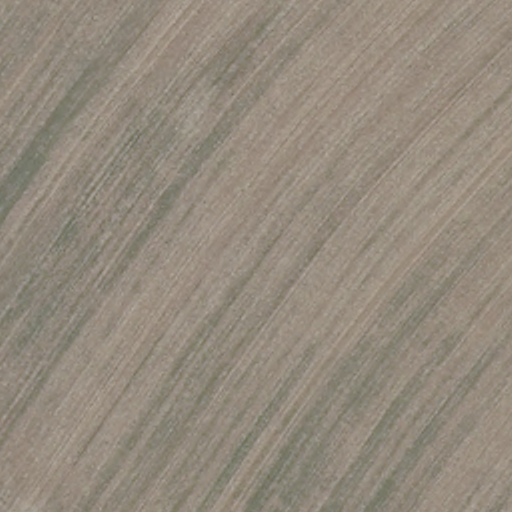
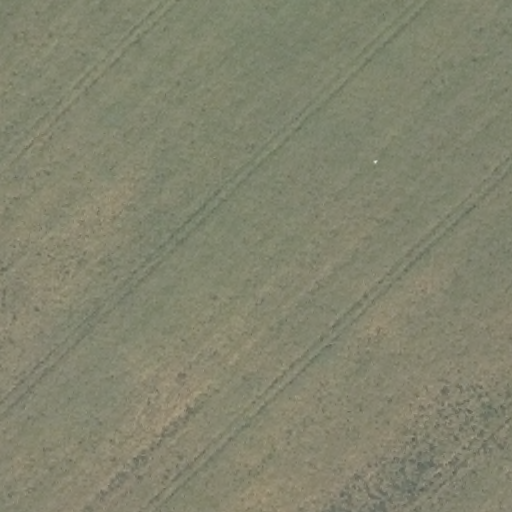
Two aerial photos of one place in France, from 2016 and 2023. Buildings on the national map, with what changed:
[]

